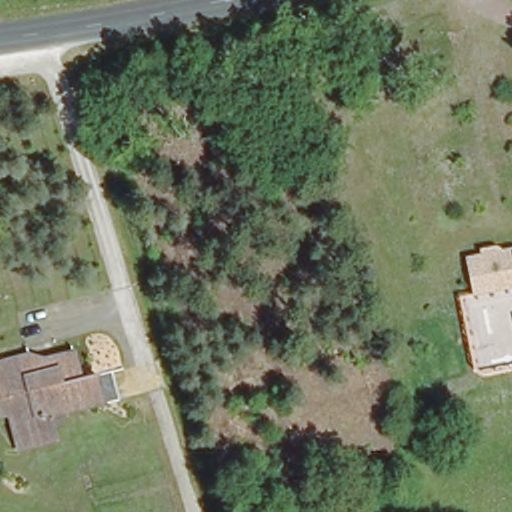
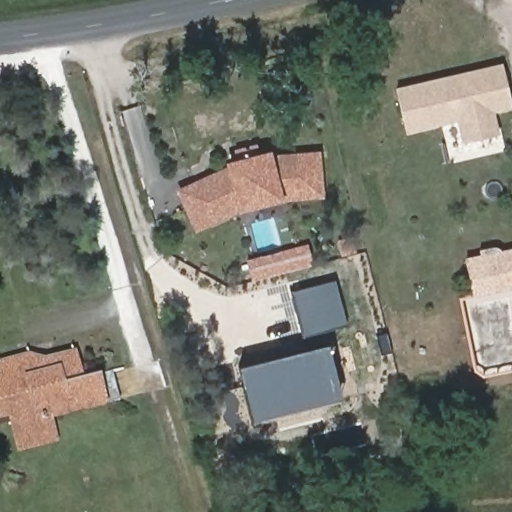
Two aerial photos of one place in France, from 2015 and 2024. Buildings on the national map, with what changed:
new [(473,166),(469,150),(464,126),(429,134),(428,129),(410,132),(402,96),(458,84),(465,82),(508,72),(512,90),(512,115),(498,119),(503,142),(507,159),(473,166)]
new [(192,232),(175,190),(225,162),(237,160),(233,150),(254,143),(257,154),(270,150),(319,150),(323,197),(282,200),(238,212),(192,232)]
unchanged [(474,295),(468,255),(476,253),(475,245),(499,240),(499,247),(512,243),(512,288),(474,295)]
new [(247,261),(308,245),(313,265),(252,281),(247,261)]
new [(334,281),(345,325),(303,336),(291,292),(334,281)]
unchanged [(58,438),(15,447),(8,417),(0,418),(0,360),(74,340),(83,372),(101,366),(116,399),(53,419),(58,438)]
new [(338,390),(273,405),(267,379),(242,385),(239,366),(328,345),(338,390)]

